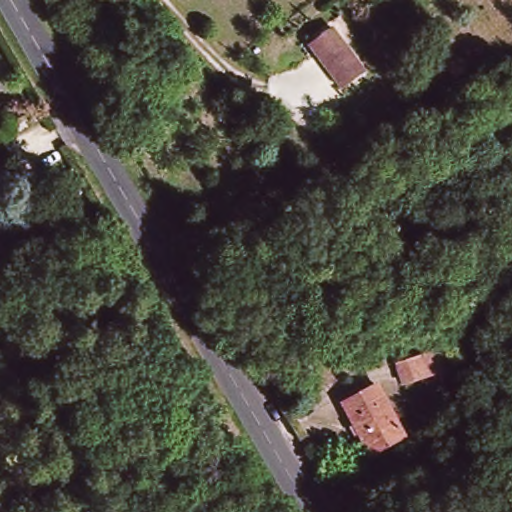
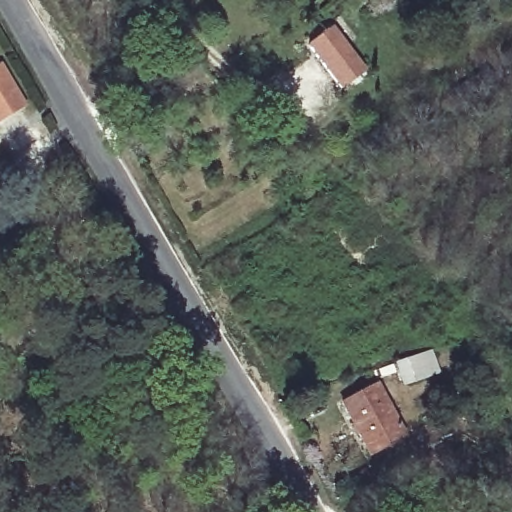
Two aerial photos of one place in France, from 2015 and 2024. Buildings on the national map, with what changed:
unchanged [(312,47),(337,30),(367,72),(342,90),(312,47)]
new [(25,107),(0,122),(0,66),(25,107)]
unchanged [(412,391),(403,365),(438,356),(459,350),(468,370),(445,377),(445,383),(412,391)]
unchanged [(343,415),(378,396),(401,440),(366,460),(343,415)]

